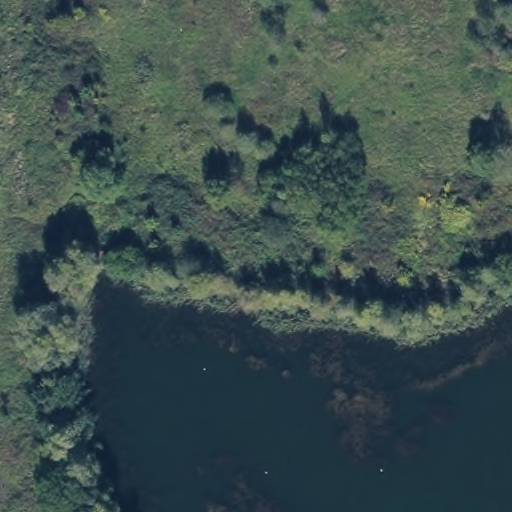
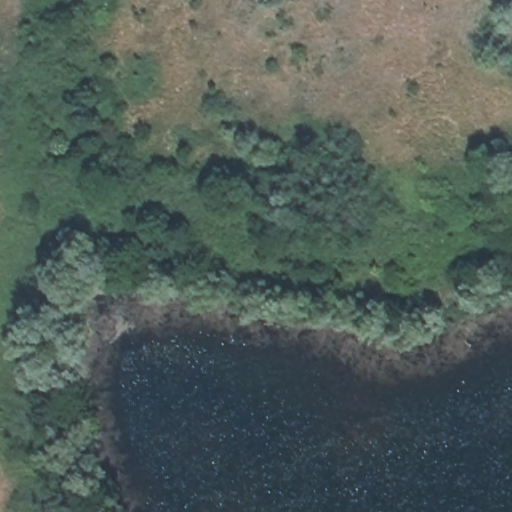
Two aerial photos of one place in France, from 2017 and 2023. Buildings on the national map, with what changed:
[]

